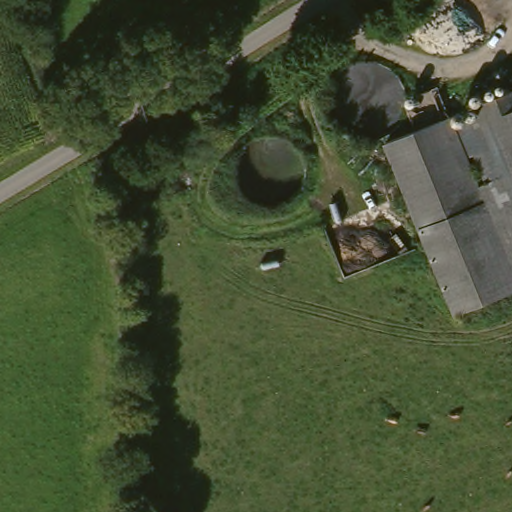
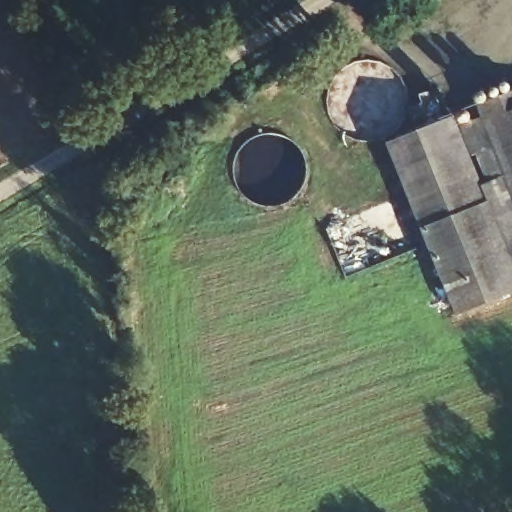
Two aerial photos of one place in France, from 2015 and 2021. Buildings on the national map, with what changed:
unchanged [(455,315),(383,143),(449,116),(512,90),(512,292),(455,315)]

